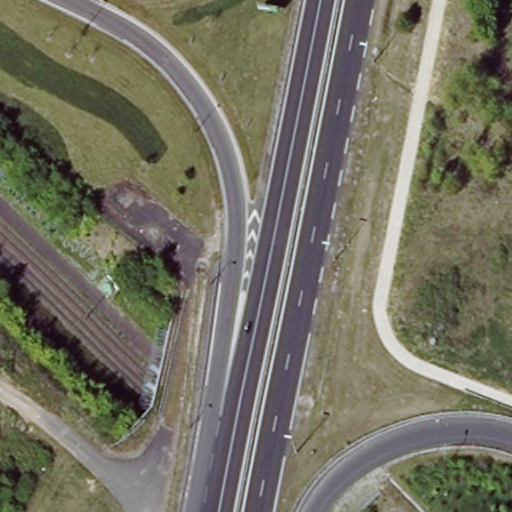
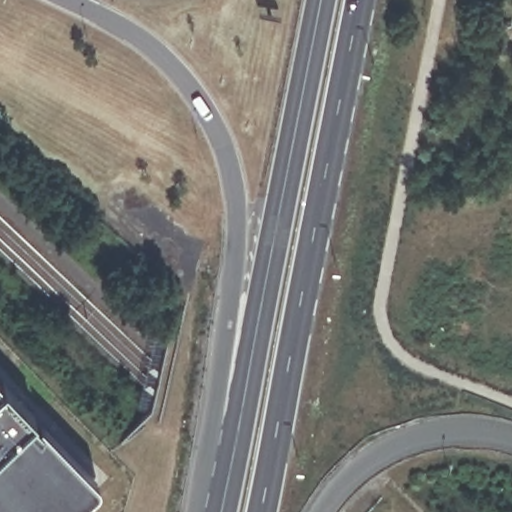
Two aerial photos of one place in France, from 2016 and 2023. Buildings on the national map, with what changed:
new [(67,512),(0,512),(0,379),(97,480),(67,512)]

